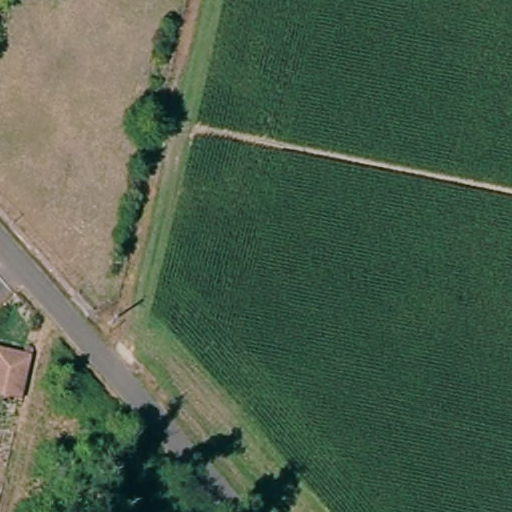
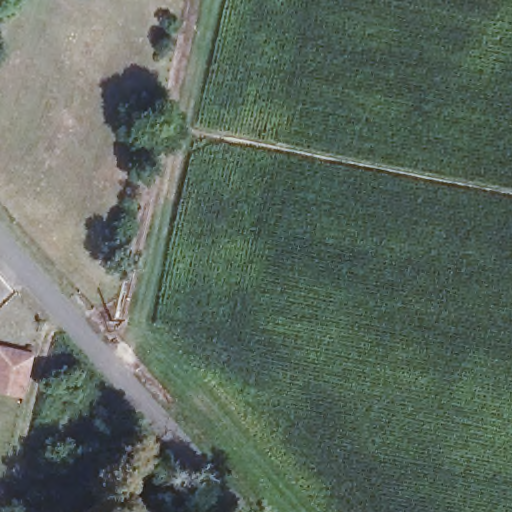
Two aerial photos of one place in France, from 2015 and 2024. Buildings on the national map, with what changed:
unchanged [(0,396),(0,354),(33,362),(25,402),(0,396)]

